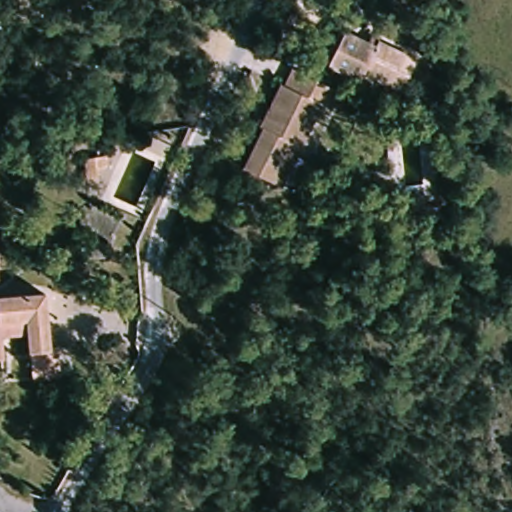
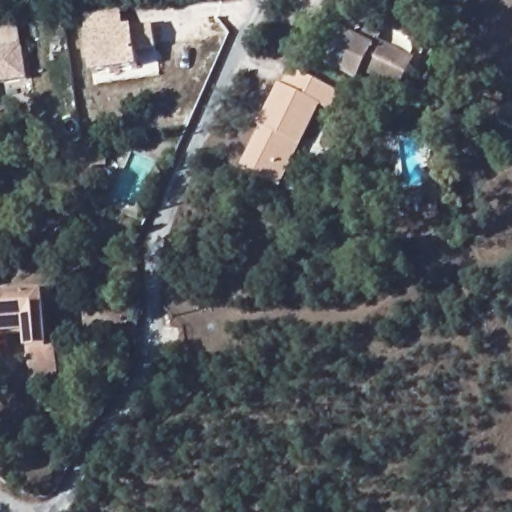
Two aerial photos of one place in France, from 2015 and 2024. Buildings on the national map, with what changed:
new [(92,75),(86,33),(83,12),(120,6),(124,28),(133,27),(153,23),(158,57),(138,60),(140,68),(92,75)]
unchanged [(375,45),(404,56),(395,80),(366,71),(363,78),(330,67),(340,42),(372,54),(375,45)]
new [(26,86),(0,89),(0,54),(22,51),(26,86)]
unchanged [(289,66),(304,73),(328,83),(329,83),(319,106),(313,103),(276,188),(238,173),(273,90),(278,92),(289,66)]
unchanged [(103,173),(115,172),(115,182),(104,183),(105,192),(95,193),(93,174),(103,173)]
unchanged [(52,350),(50,381),(23,379),(25,333),(0,332),(0,295),(45,295),(43,350),(52,350)]

